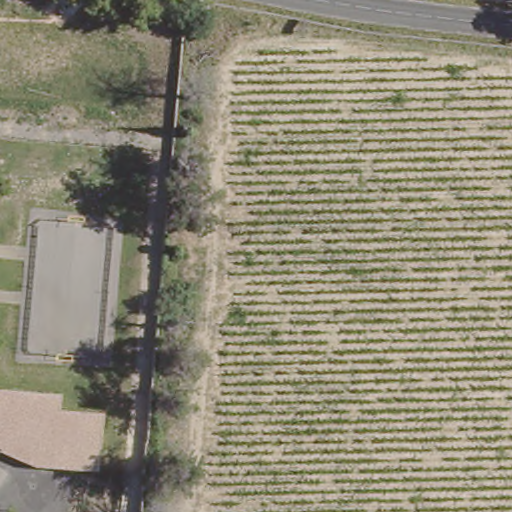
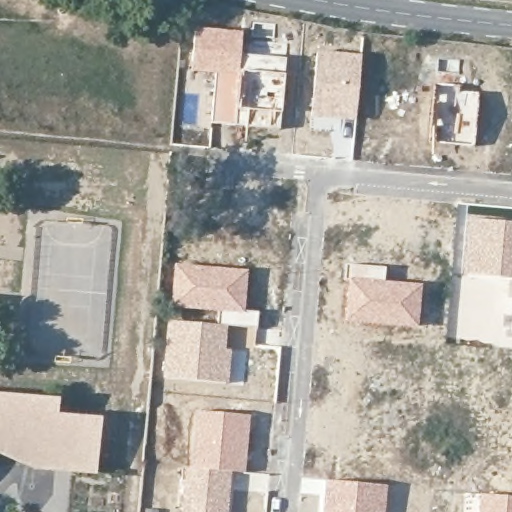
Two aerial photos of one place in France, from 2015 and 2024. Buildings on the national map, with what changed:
new [(193,27),(242,31),(242,53),(286,56),(280,131),(210,123),(215,74),(189,71),(193,27)]
new [(315,50),(362,54),(355,123),(343,122),(330,121),(310,119),(315,50)]
new [(478,92),(475,146),(450,144),(433,142),(435,86),(445,87),(444,96),(447,96),(447,97),(453,98),(453,90),(478,92)]
new [(512,220),(512,280),(509,280),(461,275),(466,214),(512,220)]
new [(173,262),(249,269),(245,312),(221,312),(170,306),(173,262)]
new [(347,263),(385,266),(385,280),(422,283),(418,328),(343,323),(345,278),(347,263)]
new [(512,280),(512,298),(507,297),(509,280),(512,280)]
new [(512,298),(512,335),(510,335),(512,298)]
new [(166,319),(220,325),(228,326),(227,347),(232,348),(228,385),(160,377),(166,319)]
unchanged [(63,395),(62,414),(105,417),(100,473),(32,468),(0,455),(0,391),(63,395)]
new [(193,411),(250,415),(245,473),(233,473),(187,467),(193,411)]
new [(187,467),(233,473),(229,512),(179,512),(183,467),(187,467)]
new [(323,480),(388,485),(385,512),(320,512),(322,495),(323,480)]
new [(477,493),(512,496),(512,512),(476,512),(476,511),(477,493)]

